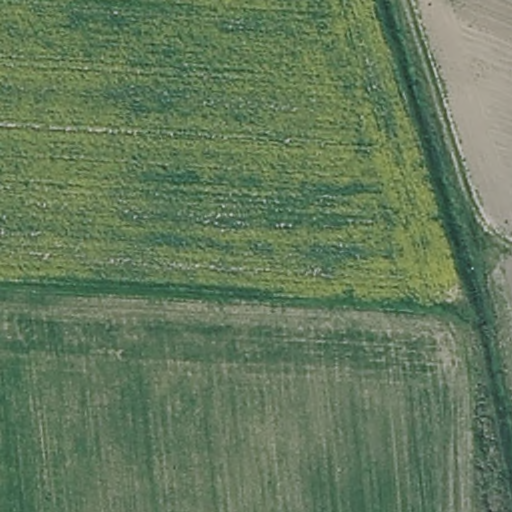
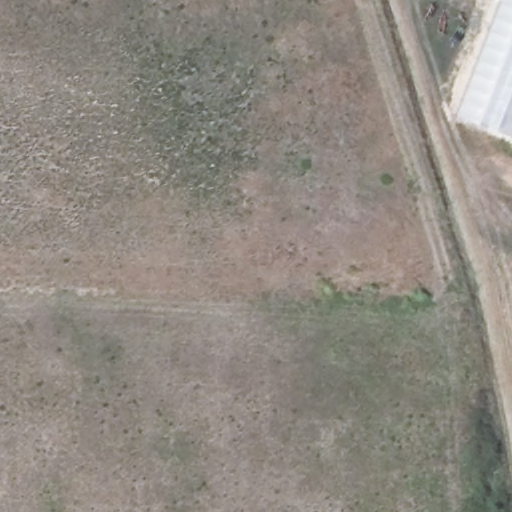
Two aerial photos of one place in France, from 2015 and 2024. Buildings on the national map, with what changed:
new [(501,0),(512,0),(512,137),(457,116),(501,0)]

